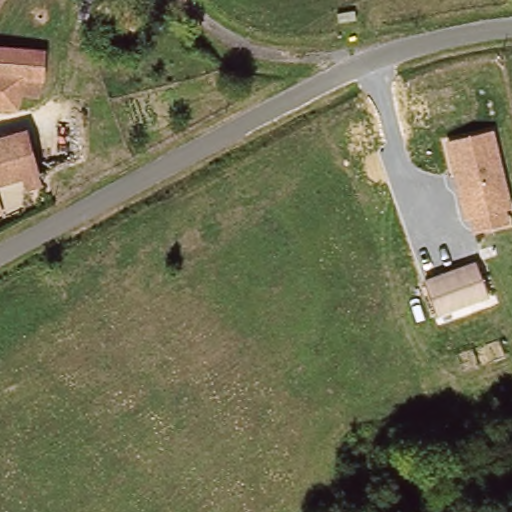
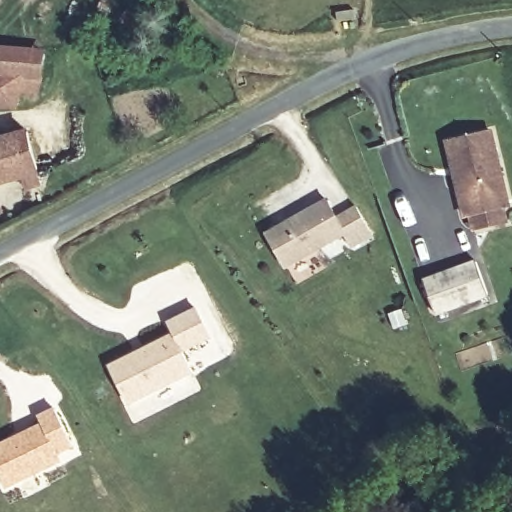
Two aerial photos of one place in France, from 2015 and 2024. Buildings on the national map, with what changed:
unchanged [(0,20),(0,0),(13,0),(0,20)]
unchanged [(34,74),(0,66),(0,64),(7,49),(58,53),(50,92),(29,91),(34,74)]
unchanged [(0,66),(34,74),(29,91),(26,105),(16,105),(0,104),(0,66)]
unchanged [(0,138),(40,126),(54,180),(12,192),(17,207),(0,216),(0,138)]
unchanged [(472,217),(465,219),(446,140),(496,128),(512,201),(512,208),(506,210),(509,224),(475,233),(472,217)]
new [(331,200),(341,217),(361,206),(377,235),(357,246),(349,233),(291,267),(280,250),(272,234),(276,231),(331,200)]
unchanged [(475,257),(489,297),(437,316),(424,277),(475,257)]
new [(173,333),(167,321),(197,306),(213,337),(183,352),(194,375),(129,407),(108,365),(173,333)]
new [(53,406),(75,448),(61,456),(63,461),(4,490),(0,480),(0,440),(39,422),(36,414),(53,406)]

